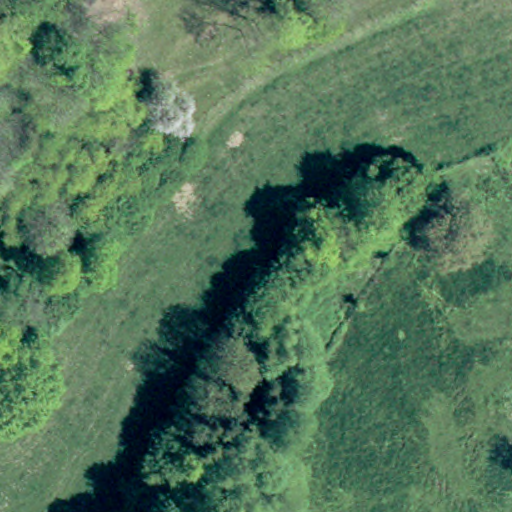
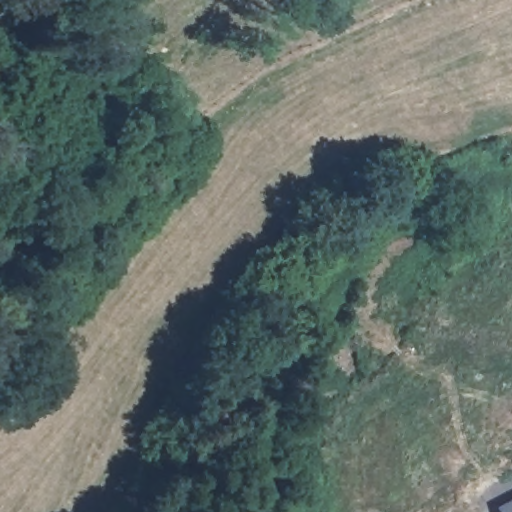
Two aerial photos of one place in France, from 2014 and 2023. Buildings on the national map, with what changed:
new [(512,499),(512,512),(499,512),(497,507),(512,499)]

